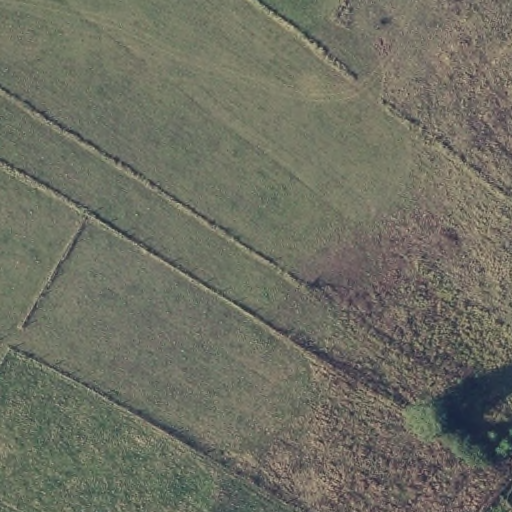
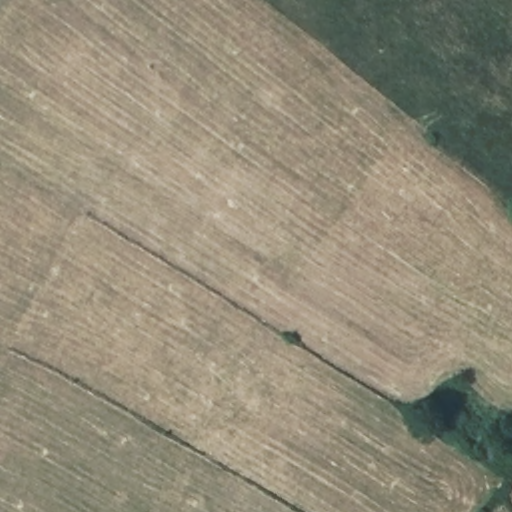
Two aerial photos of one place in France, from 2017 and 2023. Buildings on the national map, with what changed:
[]

